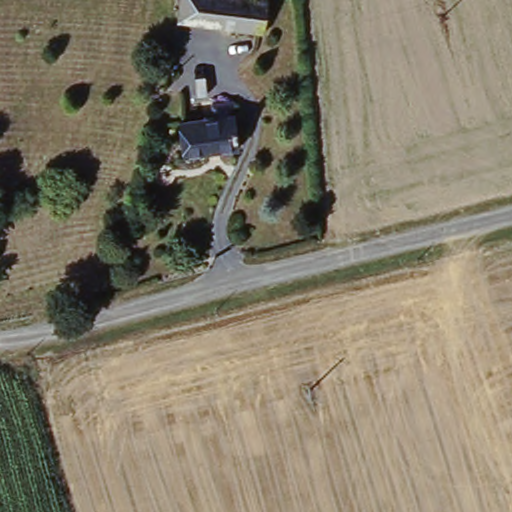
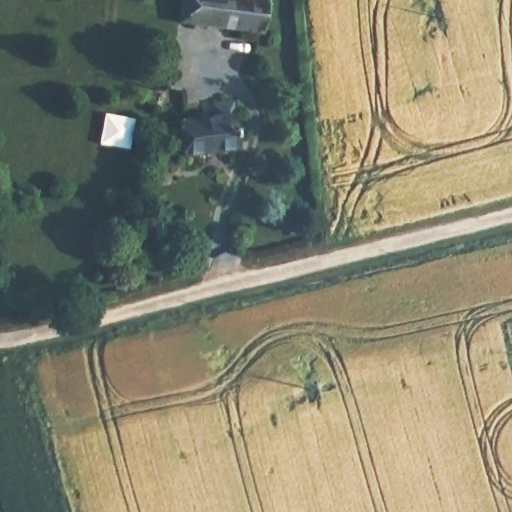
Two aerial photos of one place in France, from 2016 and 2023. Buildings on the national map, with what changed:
unchanged [(180,25),(182,0),(264,0),(268,0),(263,38),(204,29),(180,25)]
unchanged [(214,125),(212,112),(232,109),(239,154),(185,162),(180,130),(214,125)]

